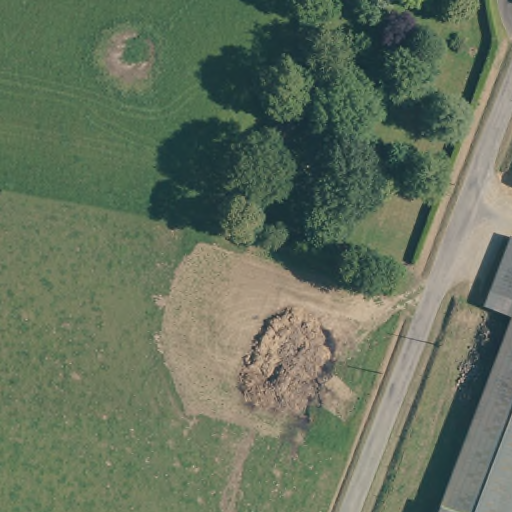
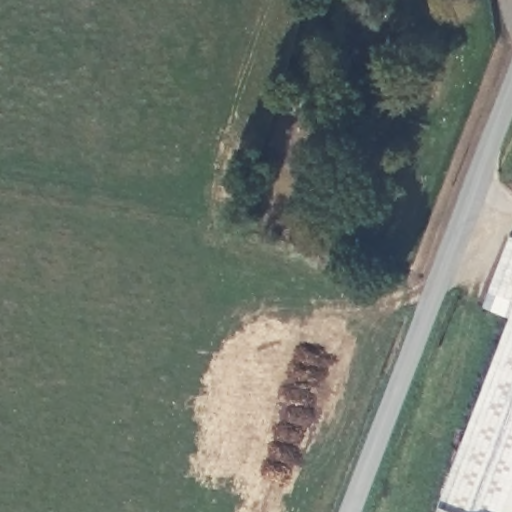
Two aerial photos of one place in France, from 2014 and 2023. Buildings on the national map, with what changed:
unchanged [(278,91),(301,98),(288,132),(265,125),(263,124),(271,106),(278,91)]
unchanged [(512,238),(512,512),(437,512),(439,507),(509,317),(484,307),(509,237),(512,238)]

